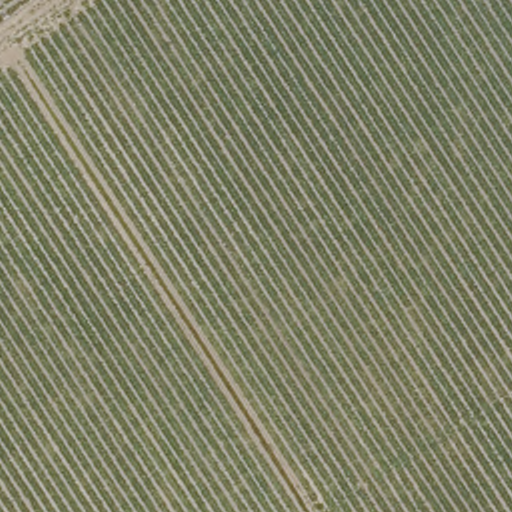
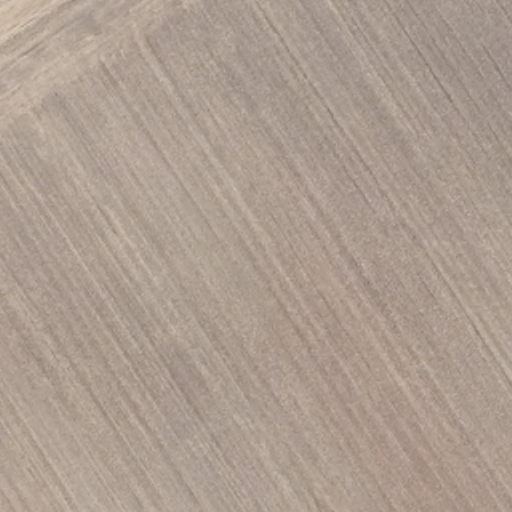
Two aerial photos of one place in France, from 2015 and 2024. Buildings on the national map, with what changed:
[]

